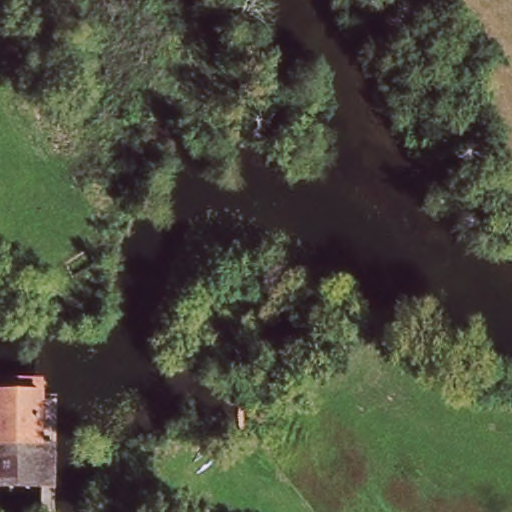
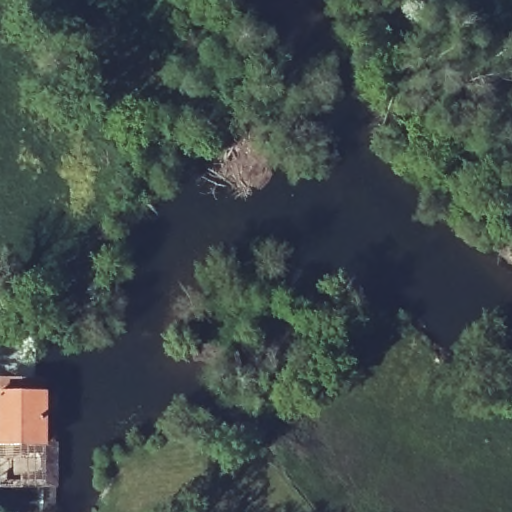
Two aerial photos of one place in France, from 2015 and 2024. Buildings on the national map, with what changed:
unchanged [(0,388),(48,386),(51,441),(0,442),(0,388)]
unchanged [(0,442),(51,441),(61,441),(61,484),(0,484),(0,442)]

